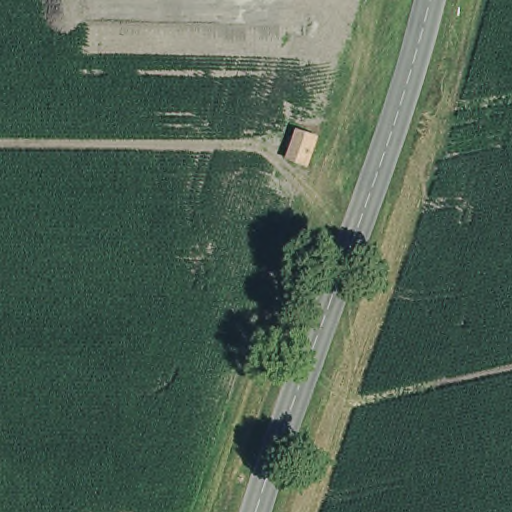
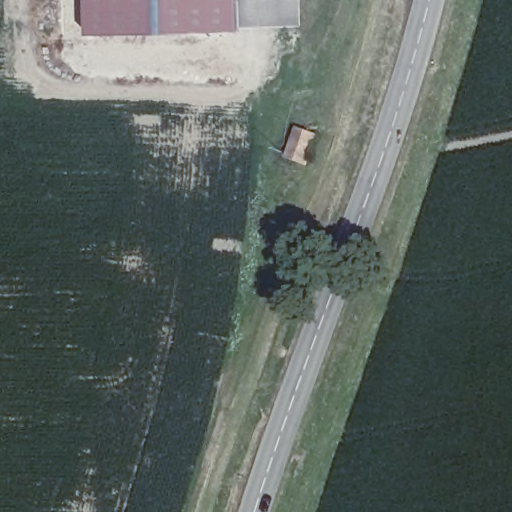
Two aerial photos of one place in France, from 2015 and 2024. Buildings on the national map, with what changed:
new [(241,29),(89,33),(88,0),(240,0),(241,29)]
unchanged [(303,122),(324,128),(315,162),(287,151),(303,122)]

